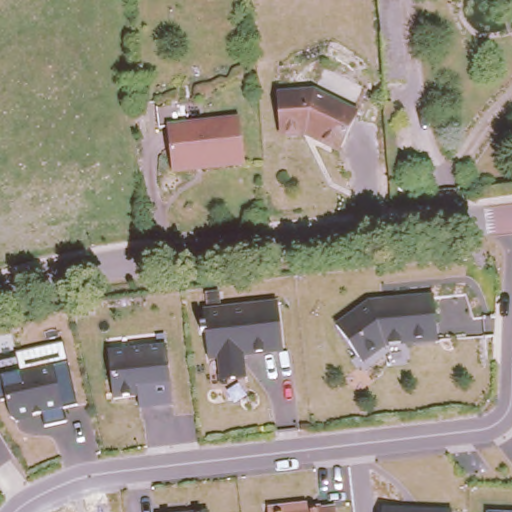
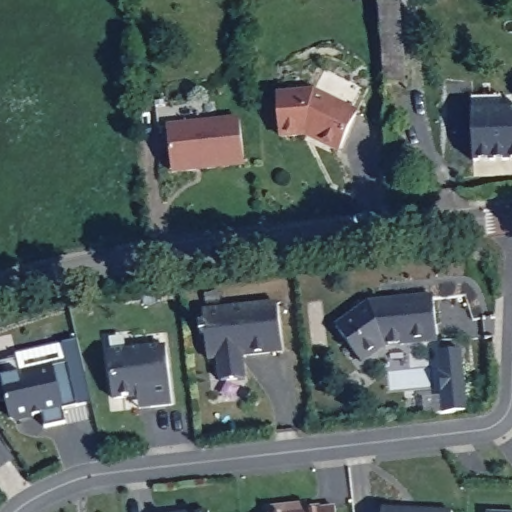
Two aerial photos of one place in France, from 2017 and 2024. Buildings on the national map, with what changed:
unchanged [(381,0),(402,0),(408,83),(388,84),(381,0)]
unchanged [(308,86),(351,106),(333,145),(309,134),(311,131),(304,130),(275,132),(272,90),(308,86)]
new [(512,109),(512,160),(471,160),(469,110),(469,95),(499,94),(499,106),(499,109),(512,109)]
unchanged [(234,116),(238,161),(166,167),(162,121),(234,116)]
unchanged [(366,302),(431,295),(437,343),(384,348),(362,365),(335,324),(366,302)]
unchanged [(276,301),(281,354),(243,358),(246,379),(218,382),(216,358),(209,360),(208,359),(203,309),(276,301)]
unchanged [(171,406),(141,411),(138,398),(113,402),(108,354),(163,348),(171,406)]
unchanged [(62,408),(65,424),(41,426),(39,414),(10,420),(1,374),(66,362),(74,405),(62,408)]
unchanged [(306,504),(308,508),(319,505),(320,510),(335,508),(335,512),(268,512),(267,507),(306,504)]
unchanged [(449,510),(449,512),(382,512),(383,508),(449,510)]
unchanged [(208,512),(199,512),(208,511),(208,512)]

